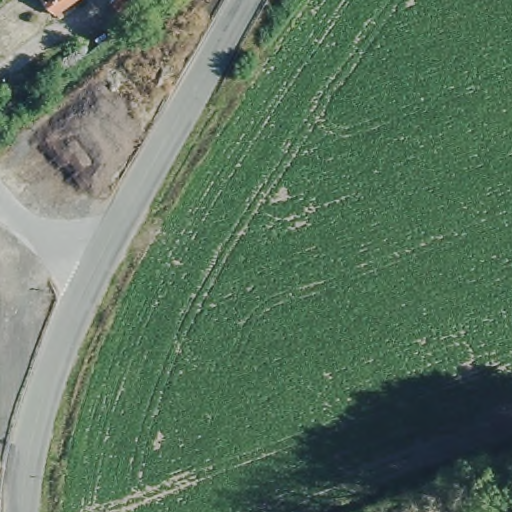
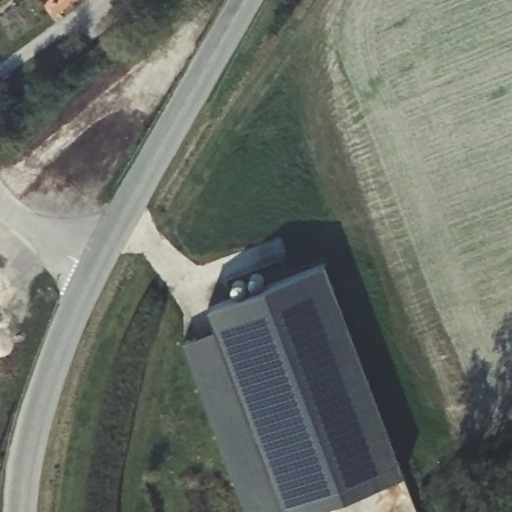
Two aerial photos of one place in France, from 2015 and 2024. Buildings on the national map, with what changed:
unchanged [(42,0),(91,0),(58,24),(42,0)]
unchanged [(144,0),(124,15),(112,0),(144,0)]
new [(218,330),(210,309),(208,310),(208,308),(231,299),(325,264),(326,265),(324,266),(402,474),(404,473),(404,475),(304,512),(247,512),(183,343),(218,330)]

